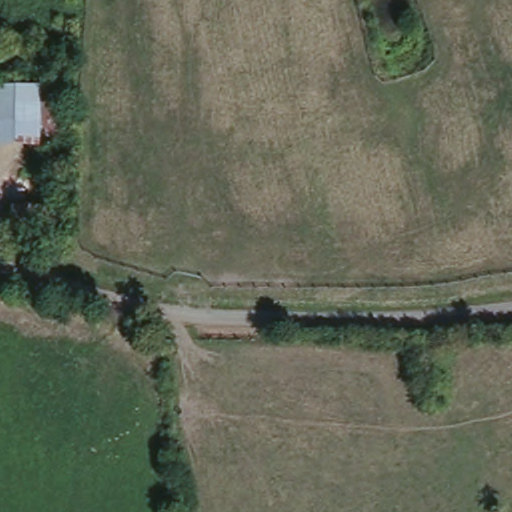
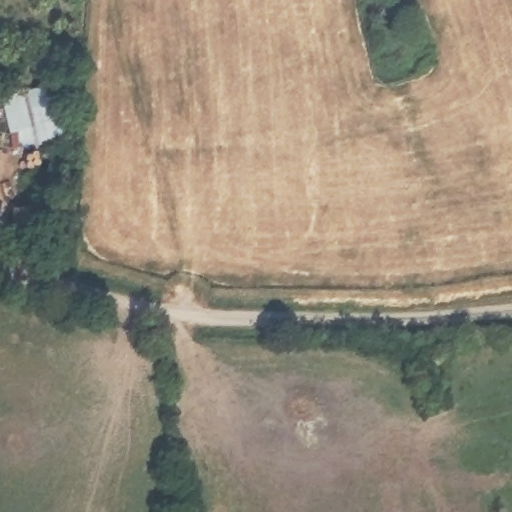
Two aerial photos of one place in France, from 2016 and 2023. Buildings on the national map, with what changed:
unchanged [(54,90),(55,145),(0,145),(0,91),(54,90)]
unchanged [(47,214),(49,237),(6,239),(7,214),(47,214)]

